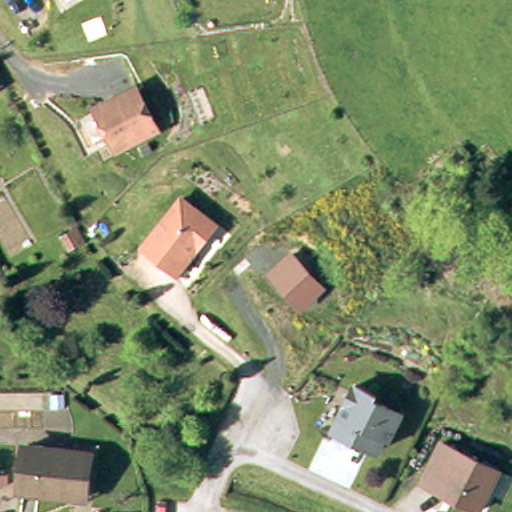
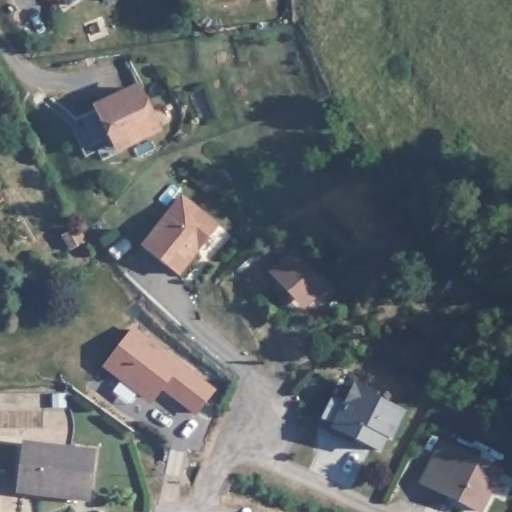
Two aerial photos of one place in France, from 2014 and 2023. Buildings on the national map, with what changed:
unchanged [(92,110),(97,107),(133,89),(155,131),(117,150),(112,152),(92,110)]
unchanged [(184,199),(216,225),(177,275),(144,250),(184,199)]
new [(292,249),(327,286),(302,310),(268,272),(292,249)]
new [(102,366),(135,325),(217,390),(196,416),(163,390),(152,405),(102,366)]
unchanged [(340,428),(337,433),(326,428),(346,388),(357,393),(360,387),(380,398),(378,402),(405,416),(393,437),(390,435),(382,450),(368,443),(359,438),(340,428)]
unchanged [(417,481),(433,445),(489,470),(470,512),(468,512),(427,492),(429,487),(417,481)]
unchanged [(87,452),(85,470),(83,496),(17,490),(20,447),(70,451),(87,452)]

